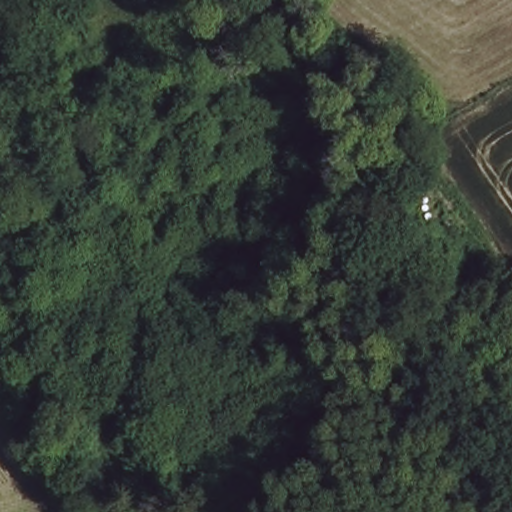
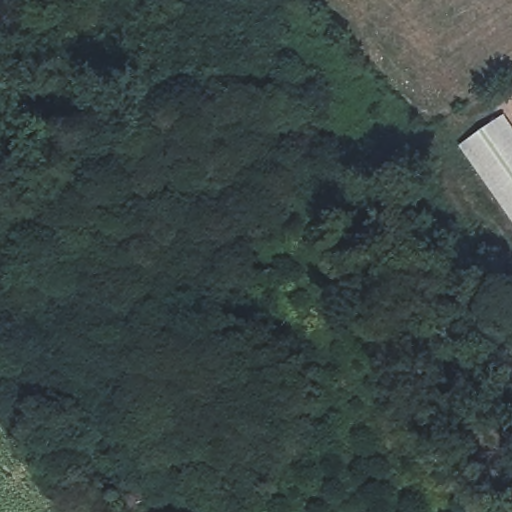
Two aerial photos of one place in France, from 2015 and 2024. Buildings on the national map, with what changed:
new [(458,147),(502,116),(512,130),(512,224),(458,147)]

